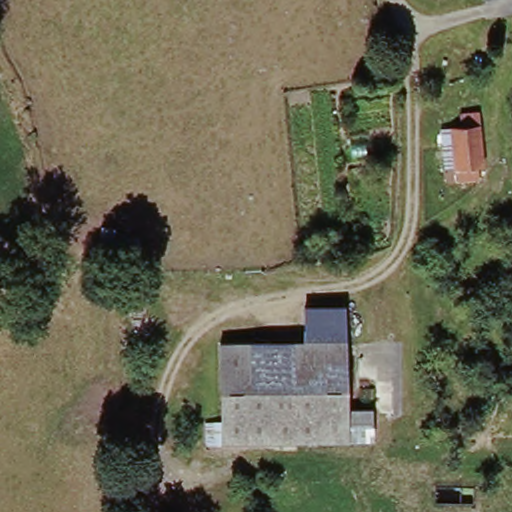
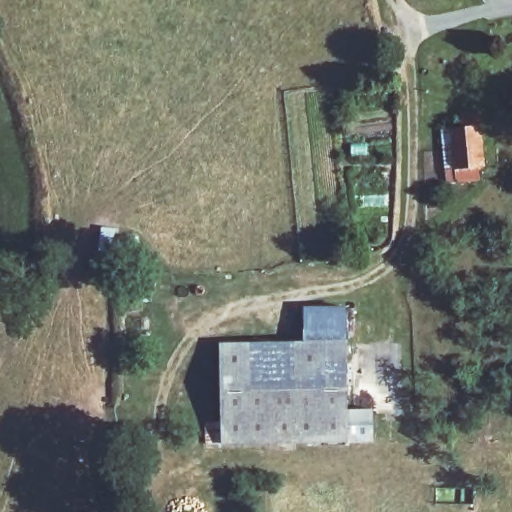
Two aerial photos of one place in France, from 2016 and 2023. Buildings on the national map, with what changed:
unchanged [(468,137),(468,121),(484,121),(489,175),(481,174),(482,185),(461,186),(460,177),(451,178),(446,139),(458,138),(468,137)]
unchanged [(90,240),(93,217),(105,217),(104,240),(95,240),(90,240)]
unchanged [(230,444),(207,444),(207,424),(229,424),(225,351),(313,348),(312,315),(352,314),(357,415),(381,414),(383,445),(358,446),(230,450),(230,444)]

